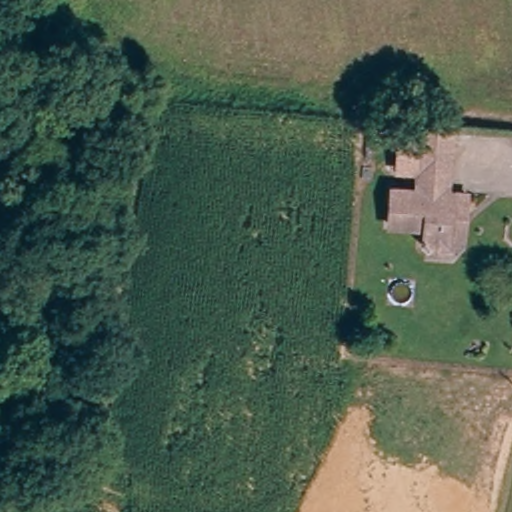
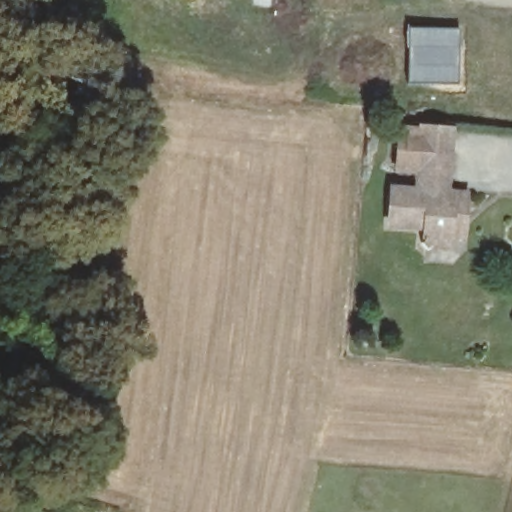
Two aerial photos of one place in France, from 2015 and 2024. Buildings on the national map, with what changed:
new [(407,26),(458,27),(458,83),(407,82),(407,26)]
unchanged [(443,255),(424,254),(420,259),(410,250),(414,242),(414,231),(382,230),(383,195),(412,197),(412,181),(392,180),(393,143),(414,144),(414,137),(445,138),(443,163),(447,164),(446,198),(464,199),(462,223),(461,255),(443,255)]

